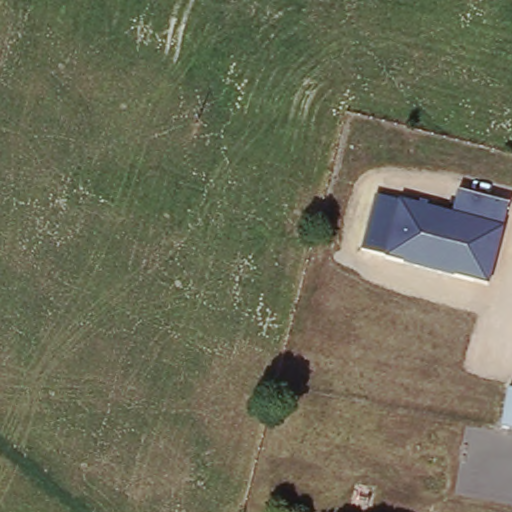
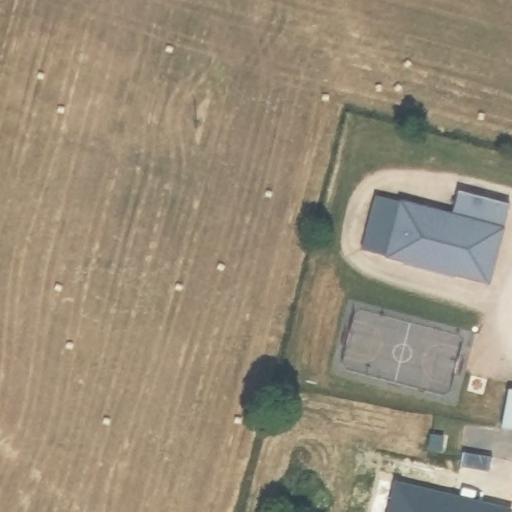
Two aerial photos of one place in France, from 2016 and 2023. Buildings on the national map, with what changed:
unchanged [(360,244),(373,187),(451,210),(458,186),(510,198),(490,277),(360,244)]
unchanged [(512,385),(512,424),(500,421),(511,384),(512,385)]
new [(510,512),(387,512),(393,482),(510,510),(510,512)]

